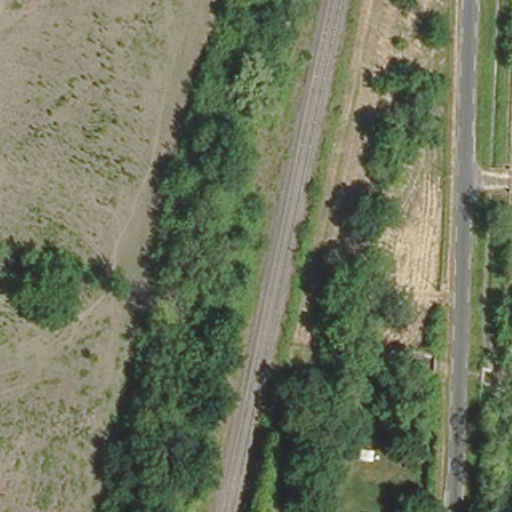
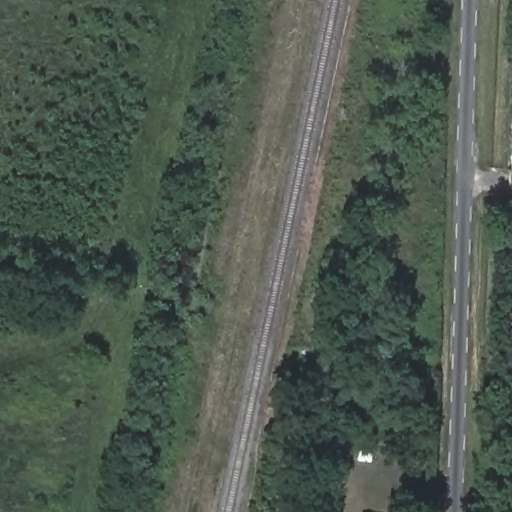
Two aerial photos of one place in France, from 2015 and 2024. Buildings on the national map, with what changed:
unchanged [(503,344),(512,344),(512,368),(503,368),(503,344)]

